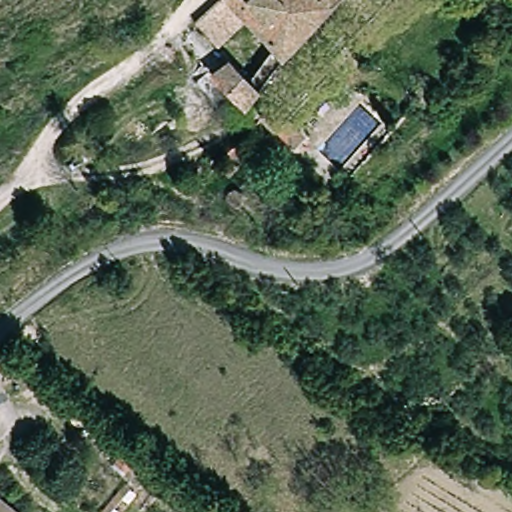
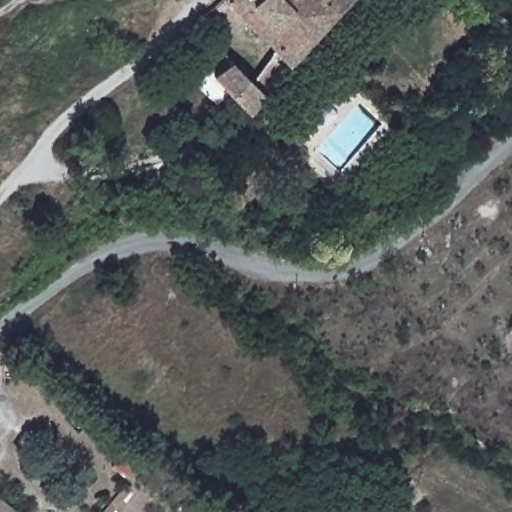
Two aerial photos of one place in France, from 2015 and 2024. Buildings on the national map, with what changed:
unchanged [(222,0),(227,0),(247,21),(217,49),(195,25),(222,0)]
unchanged [(345,0),(279,69),(268,59),(275,51),(247,21),(227,0),(345,0)]
unchanged [(248,79),(261,66),(273,76),(260,91),(242,110),(235,103),(225,93),(211,79),(229,61),(248,79)]
unchanged [(233,156),(227,161),(222,155),(289,90),(301,104),(241,163),(233,156)]
unchanged [(310,136),(291,122),(303,108),(322,124),(310,136)]
unchanged [(3,499),(19,512),(0,512),(0,503),(3,499)]

